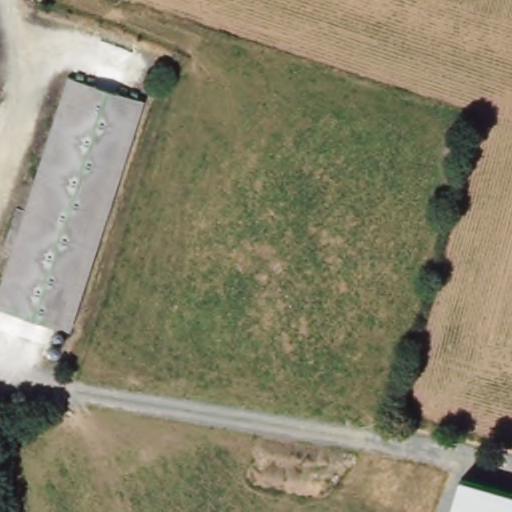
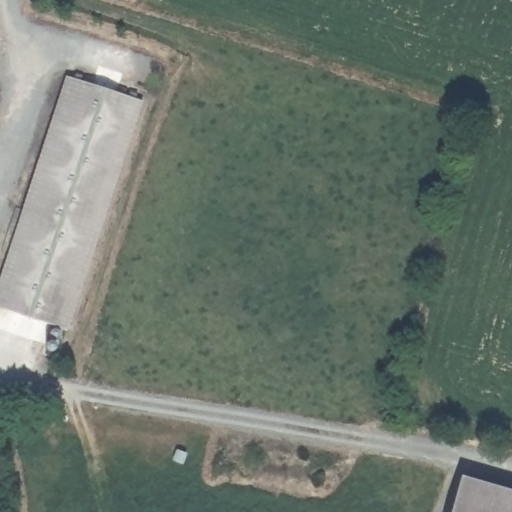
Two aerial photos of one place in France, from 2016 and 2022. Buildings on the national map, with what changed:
unchanged [(69,334),(0,312),(0,294),(67,76),(139,98),(69,334)]
unchanged [(451,512),(462,477),(512,490),(512,512),(451,512)]

